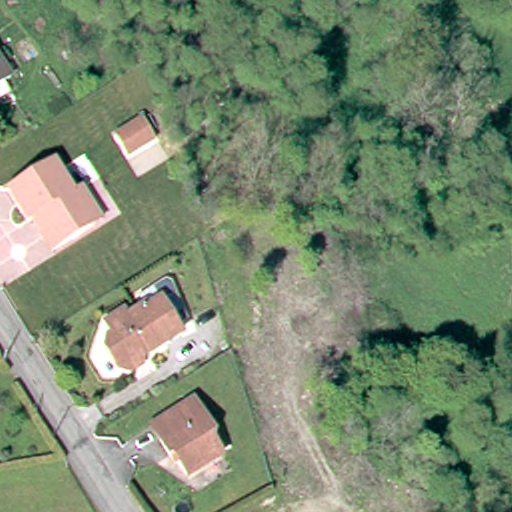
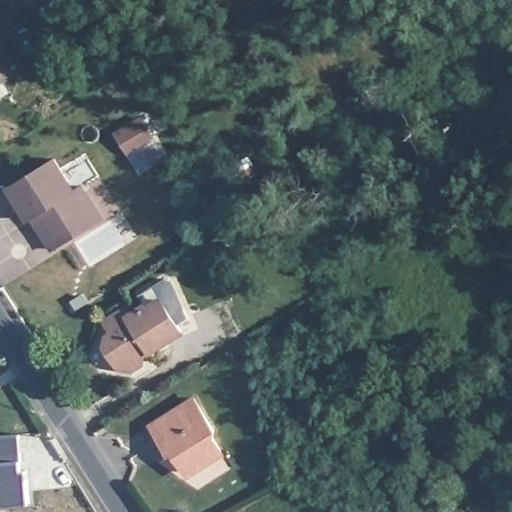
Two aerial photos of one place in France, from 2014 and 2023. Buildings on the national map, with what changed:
unchanged [(4,74),(0,76),(0,68),(4,74)]
new [(141,119),(152,139),(129,153),(118,134),(141,119)]
unchanged [(25,221),(4,189),(49,159),(69,190),(77,185),(88,202),(98,219),(90,224),(50,250),(39,234),(29,218),(25,221)]
unchanged [(126,309),(141,300),(143,302),(158,293),(179,326),(141,350),(141,356),(129,364),(117,361),(103,341),(106,329),(110,326),(103,316),(122,303),(126,309)]
unchanged [(211,426),(211,435),(221,447),(186,471),(172,449),(169,451),(150,423),(190,396),(211,426)]
new [(21,461),(22,471),(27,471),(29,502),(0,505),(0,436),(19,435),(21,461)]

